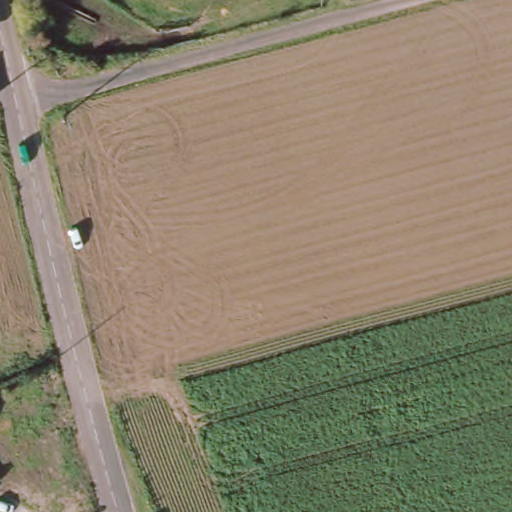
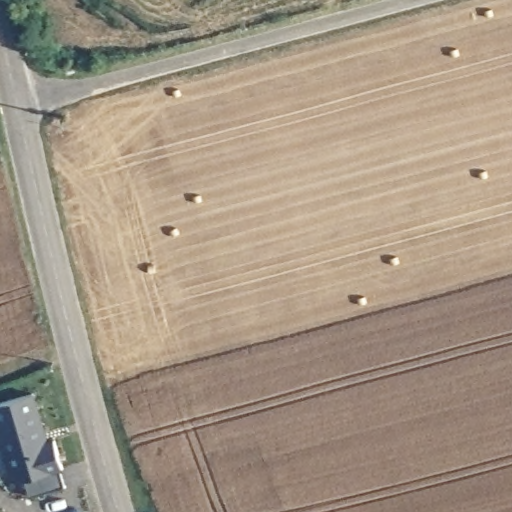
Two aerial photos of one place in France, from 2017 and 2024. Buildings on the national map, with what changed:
new [(48,434),(55,436),(64,472),(63,485),(30,495),(20,462),(7,466),(0,443),(0,402),(35,391),(48,434)]

